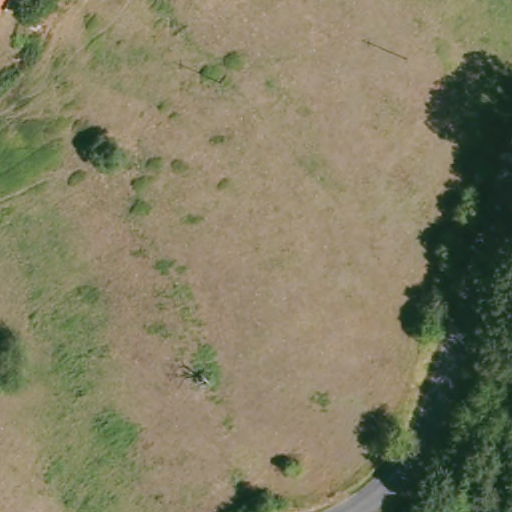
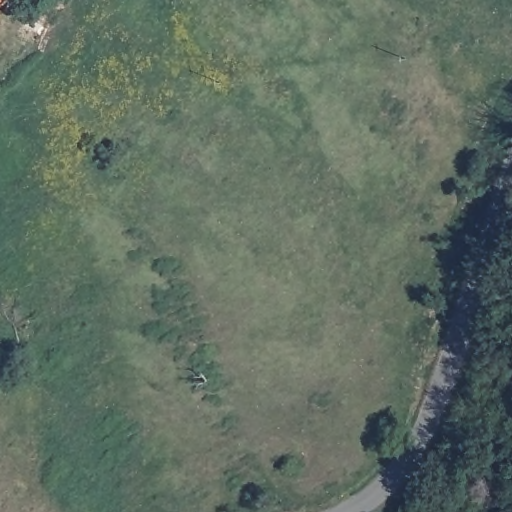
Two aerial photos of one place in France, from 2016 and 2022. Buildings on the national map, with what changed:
unchanged [(4,0),(0,9),(0,0),(4,0)]
unchanged [(44,37),(25,25),(31,15),(51,27),(44,37)]

